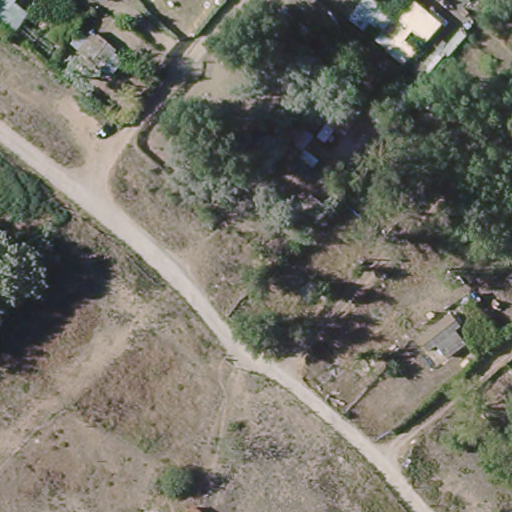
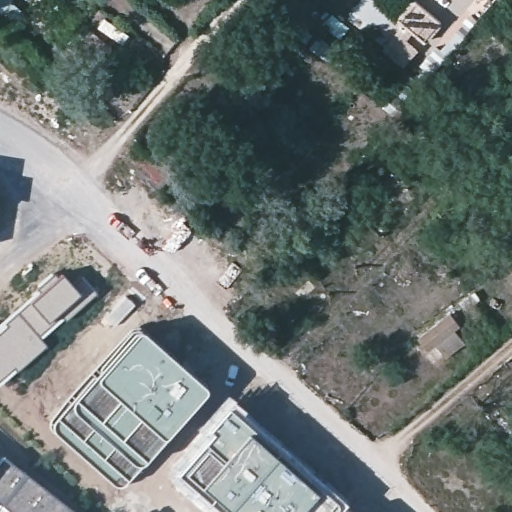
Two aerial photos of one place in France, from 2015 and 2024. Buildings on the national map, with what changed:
unchanged [(0,16),(0,0),(12,0),(0,16)]
unchanged [(398,20),(414,1),(440,23),(424,42),(411,30),(403,40),(416,50),(404,65),(385,49),(391,41),(353,10),(362,0),(372,0),(398,20)]
demolished [(328,29),(359,54),(347,67),(341,62),(331,69),(312,47),(328,29)]
demolished [(433,128),(413,109),(430,91),(450,110),(433,128)]
new [(24,301),(58,269),(68,279),(78,272),(95,292),(40,338),(46,345),(0,382),(0,320),(24,301)]
unchanged [(502,274),(512,269),(512,292),(502,274)]
unchanged [(451,306),(469,345),(434,366),(414,335),(451,306)]
new [(71,391),(134,326),(168,355),(205,388),(147,457),(118,487),(112,483),(52,431),(48,425),(71,391)]
new [(199,430),(228,399),(240,408),(238,411),(342,501),(340,504),(348,512),(205,512),(170,479),(169,471),(203,433),(199,430)]
new [(3,456),(14,465),(17,462),(25,468),(22,472),(37,484),(40,480),(48,486),(45,489),(57,499),(60,495),(68,502),(65,505),(72,511),(74,507),(80,512),(7,512),(0,506),(0,460),(3,456)]
unchanged [(202,512),(187,512),(193,504),(202,512)]

